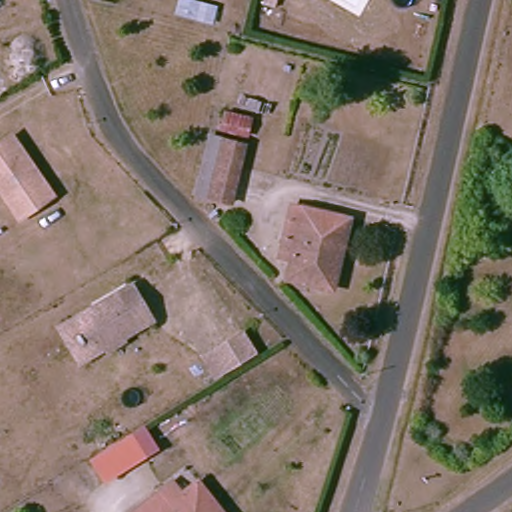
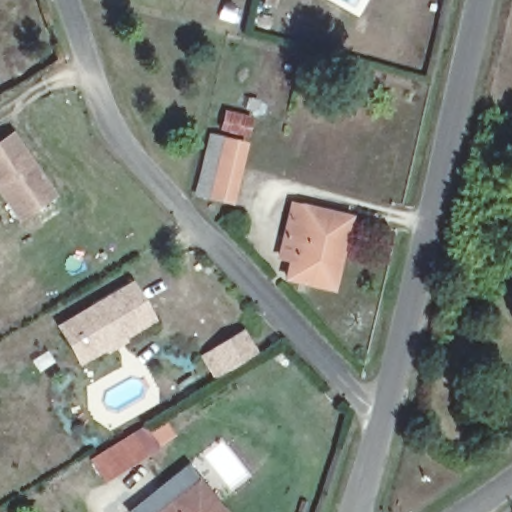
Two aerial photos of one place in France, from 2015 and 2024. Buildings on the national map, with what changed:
unchanged [(251,136),(232,217),(212,212),(232,133),(251,136)]
unchanged [(20,225),(0,194),(0,147),(14,138),(47,191),(54,202),(37,213),(20,225)]
unchanged [(292,243),(302,204),(323,209),(321,218),(350,225),(343,253),(352,255),(343,289),(295,283),(300,265),(286,263),(292,243)]
unchanged [(64,330),(75,323),(134,286),(155,321),(95,357),(82,365),(64,330)]
unchanged [(206,355),(215,350),(246,332),(260,356),(228,374),(219,379),(206,355)]
unchanged [(141,432),(152,452),(136,461),(100,482),(89,461),(125,441),(141,432)]
unchanged [(161,496),(180,480),(189,492),(202,482),(225,512),(139,512),(161,496)]

